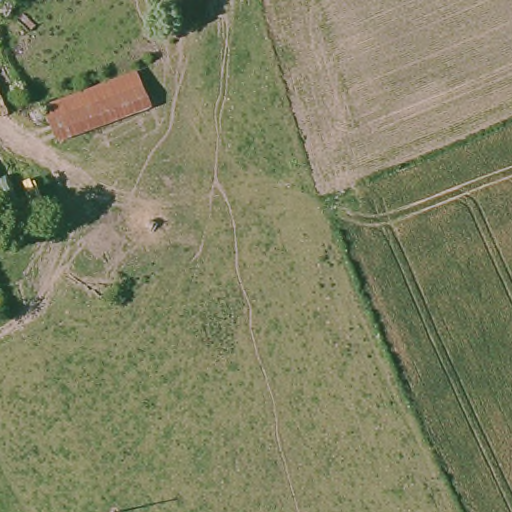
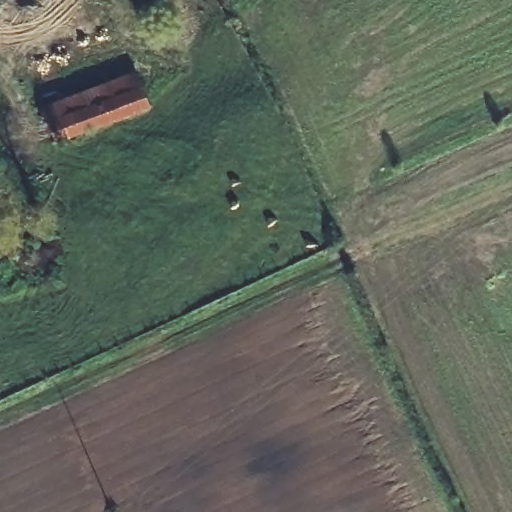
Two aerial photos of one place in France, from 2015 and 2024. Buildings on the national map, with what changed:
unchanged [(135,72),(152,111),(55,146),(38,107),(135,72)]

